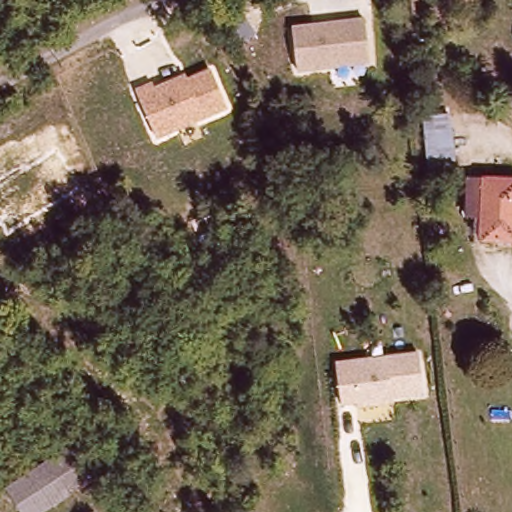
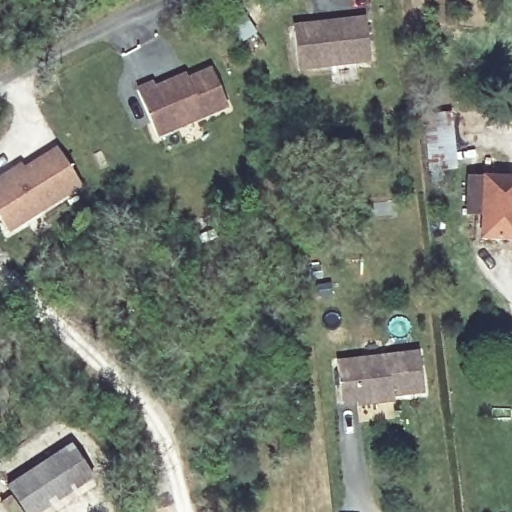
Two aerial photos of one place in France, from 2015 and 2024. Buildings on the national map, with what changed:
unchanged [(333,37),(333,32),(371,27),(377,69),(305,79),(300,41),(333,37)]
unchanged [(136,89),(154,82),(156,87),(188,74),(189,77),(210,69),(226,108),(157,139),(136,89)]
unchanged [(456,168),(429,170),(423,116),(450,113),(456,168)]
new [(0,223),(0,176),(20,165),(23,170),(57,149),(82,190),(8,236),(0,223)]
unchanged [(483,246),(485,188),(512,188),(512,246),(508,247),(483,246)]
unchanged [(336,363),(419,352),(424,396),(392,401),(392,405),(358,410),(356,404),(341,406),(336,363)]
unchanged [(96,491),(60,512),(18,512),(7,498),(71,453),(96,491)]

